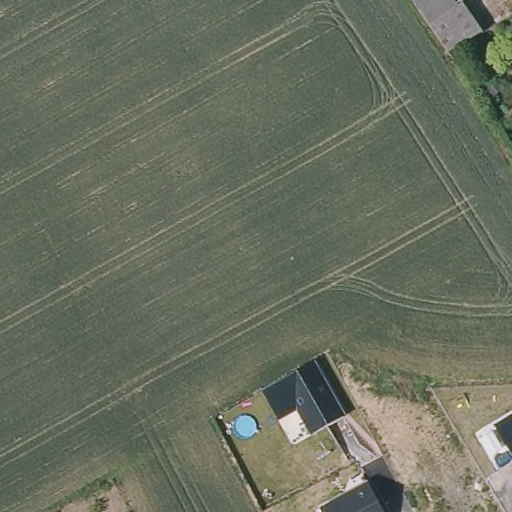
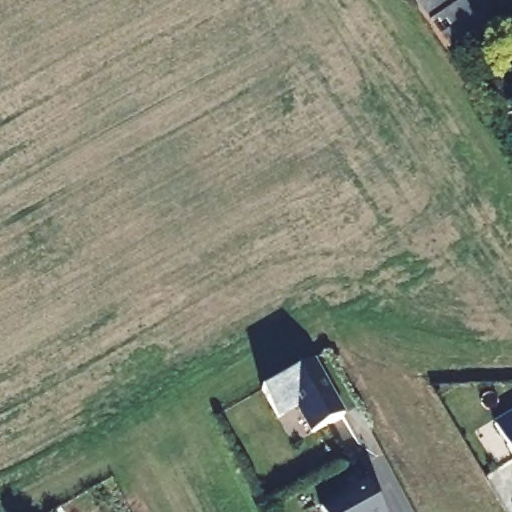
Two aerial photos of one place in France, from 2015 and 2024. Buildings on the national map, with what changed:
unchanged [(410,0),(442,0),(447,6),(424,20),(410,0)]
unchanged [(447,6),(458,0),(461,0),(479,28),(443,48),(424,20),(447,6)]
unchanged [(309,432),(295,412),(275,423),(254,391),(309,359),(340,415),(309,432)]
unchanged [(510,456),(490,419),(512,407),(512,455),(510,456)]
unchanged [(370,483),(384,512),(321,512),(319,508),(370,483)]

